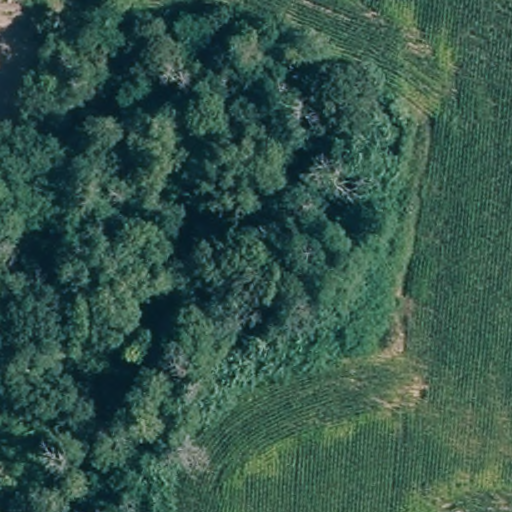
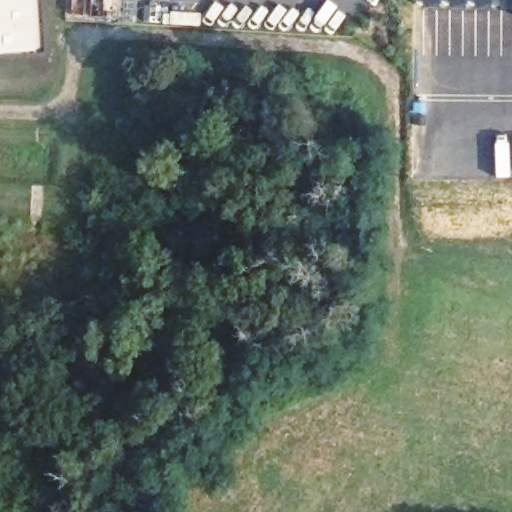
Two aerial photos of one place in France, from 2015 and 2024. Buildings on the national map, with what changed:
new [(44,52),(0,55),(0,0),(42,0),(44,52)]
demolished [(10,102),(7,126),(0,125),(0,45),(16,46),(10,102)]

